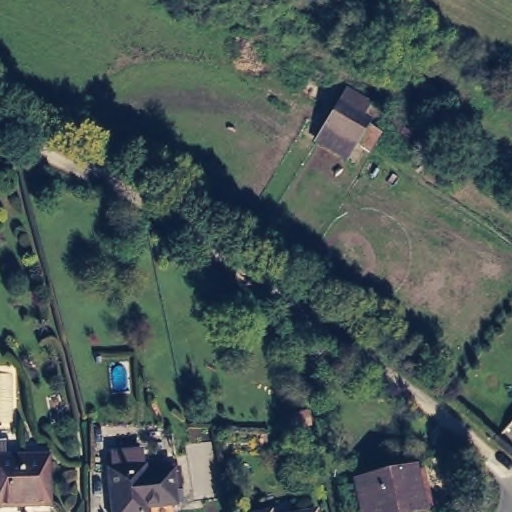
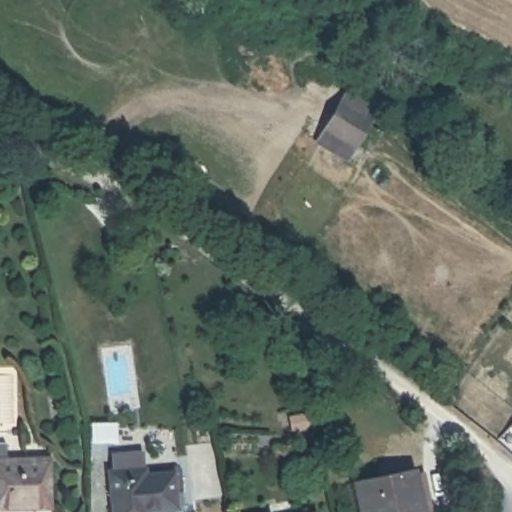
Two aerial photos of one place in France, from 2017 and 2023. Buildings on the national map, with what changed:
unchanged [(316,140),(324,127),(341,101),(369,117),(352,144),(345,155),(316,140)]
unchanged [(0,509),(0,457),(51,456),(52,508),(0,509)]
unchanged [(174,478),(177,511),(159,512),(117,512),(114,477),(116,476),(114,461),(145,458),(146,480),(174,478)]
unchanged [(422,512),(360,512),(355,481),(412,470),(422,512)]

